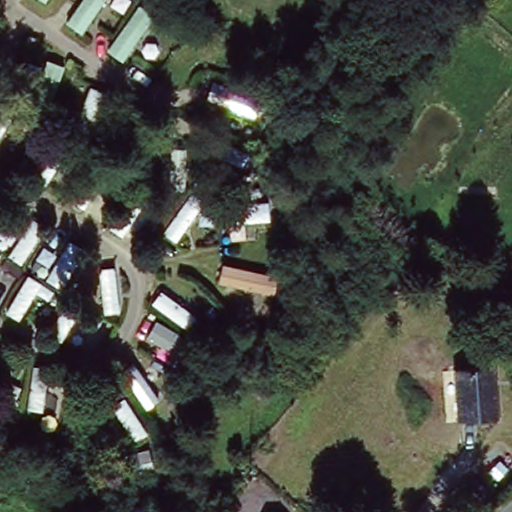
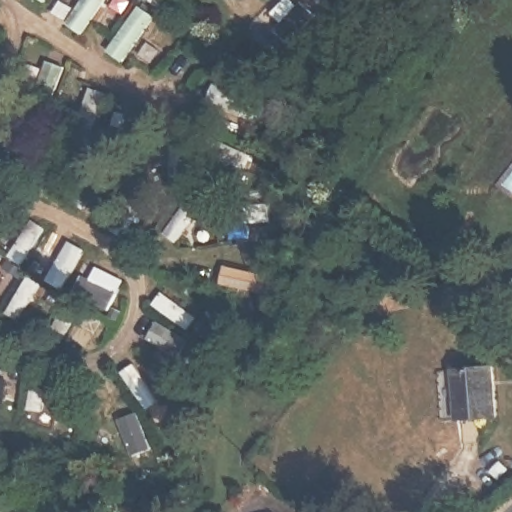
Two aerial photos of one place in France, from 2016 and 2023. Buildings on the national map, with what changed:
unchanged [(490,366),(492,420),(457,423),(454,367),(490,366)]

